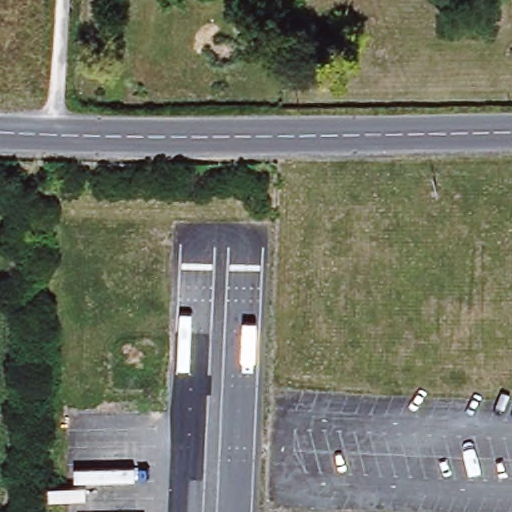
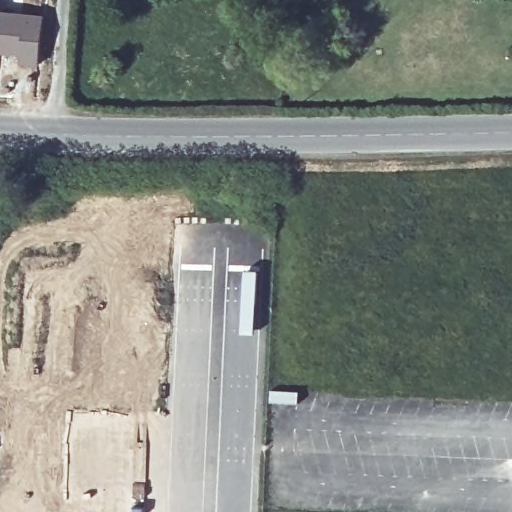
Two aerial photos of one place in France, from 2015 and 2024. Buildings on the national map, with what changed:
new [(2,2),(1,9),(46,14),(39,68),(17,64),(18,57),(0,55),(0,2),(2,2)]

